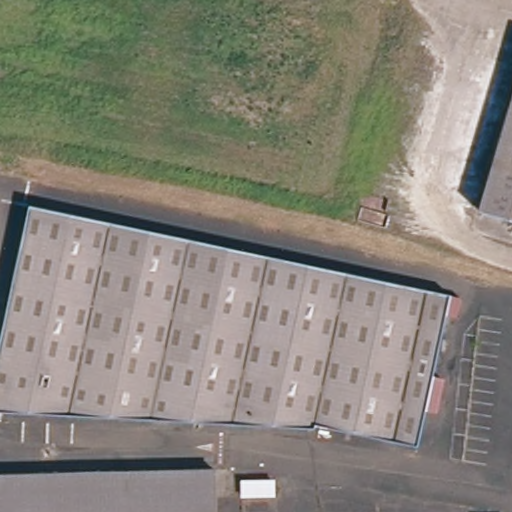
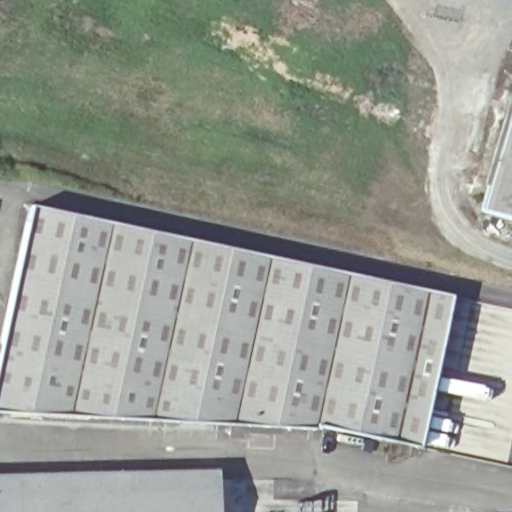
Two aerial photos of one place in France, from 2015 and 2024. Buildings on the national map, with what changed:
unchanged [(480,212),(512,105),(512,221),(480,212)]
unchanged [(317,425),(315,434),(276,432),(0,414),(0,345),(23,229),(28,207),(451,294),(419,446),(317,425)]
unchanged [(215,512),(0,512),(0,478),(214,474),(215,512)]
unchanged [(273,501),(243,501),(243,486),(273,485),(273,501)]

